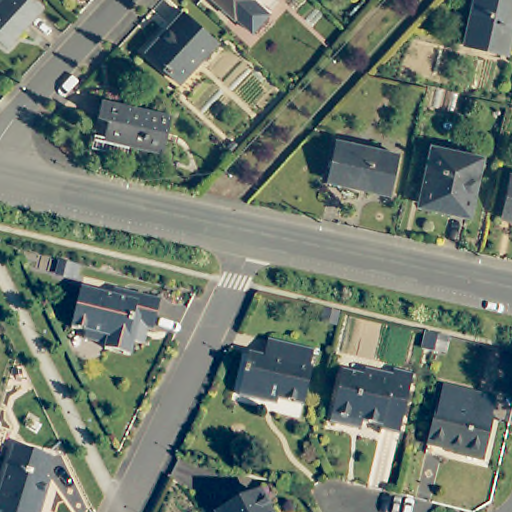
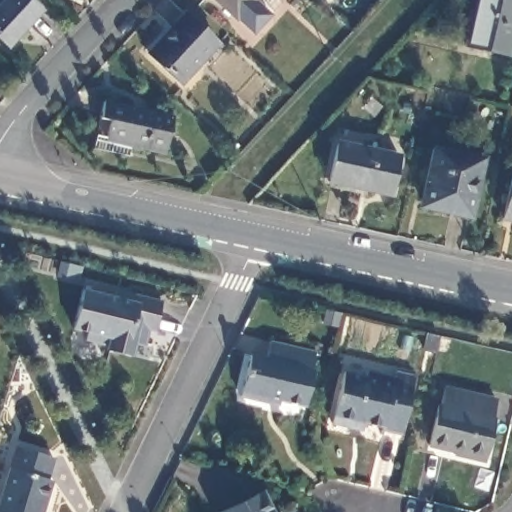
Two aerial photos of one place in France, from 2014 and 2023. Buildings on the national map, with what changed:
unchanged [(7,45),(0,39),(0,2),(2,0),(30,0),(41,10),(7,45)]
unchanged [(279,2),(251,32),(233,16),(231,18),(212,0),(277,0),(279,2)]
unchanged [(507,54),(462,46),(471,0),(512,0),(512,26),(507,54)]
unchanged [(215,38),(180,78),(145,48),(182,8),(215,38)]
unchanged [(92,142),(99,112),(103,94),(173,110),(163,148),(130,140),(127,150),(92,142)]
unchanged [(397,155),(388,195),(328,182),(336,142),(397,155)]
unchanged [(482,159),(470,218),(421,206),(432,148),(482,159)]
unchanged [(512,177),(512,221),(501,218),(510,176),(512,177)]
unchanged [(161,299),(154,330),(147,328),(144,342),(135,340),(132,355),(106,349),(107,344),(86,338),(87,331),(72,328),(82,288),(114,296),(115,288),(161,299)]
unchanged [(314,349),(310,365),(312,365),(302,403),(265,394),(263,399),(238,393),(249,350),(264,354),(268,338),(314,349)]
unchanged [(413,374),(399,435),(379,430),(380,427),(356,420),(354,429),(330,423),(342,371),(362,376),(365,369),(392,376),(393,369),(413,374)]
unchanged [(496,401),(491,419),(493,420),(483,460),(427,446),(438,406),(440,406),(445,388),(496,401)]
unchanged [(47,477),(52,478),(42,512),(0,512),(0,500),(17,445),(53,456),(47,477)]
unchanged [(271,512),(219,512),(260,491),(271,512)]

